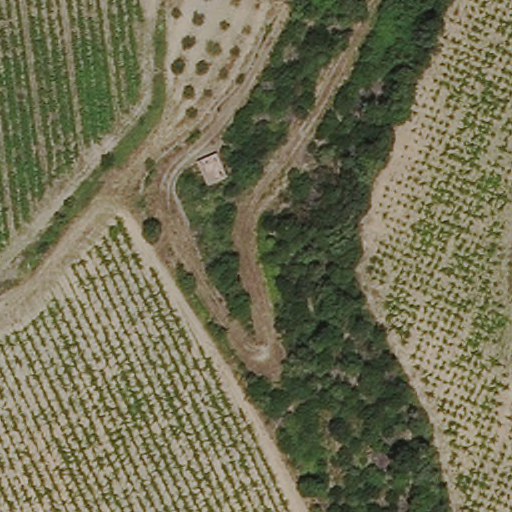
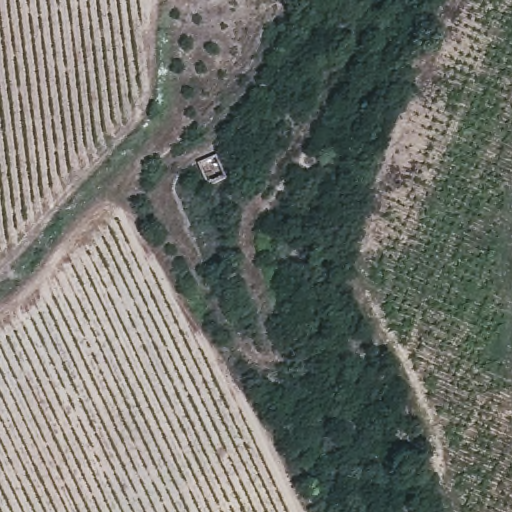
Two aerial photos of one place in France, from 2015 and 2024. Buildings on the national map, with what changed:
unchanged [(194,173),(213,161),(225,182),(205,192),(194,173)]

